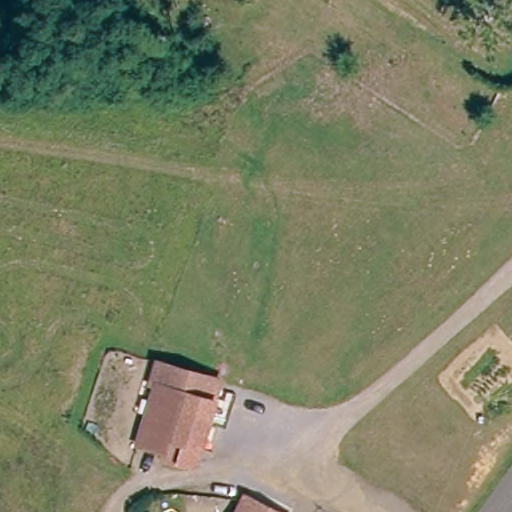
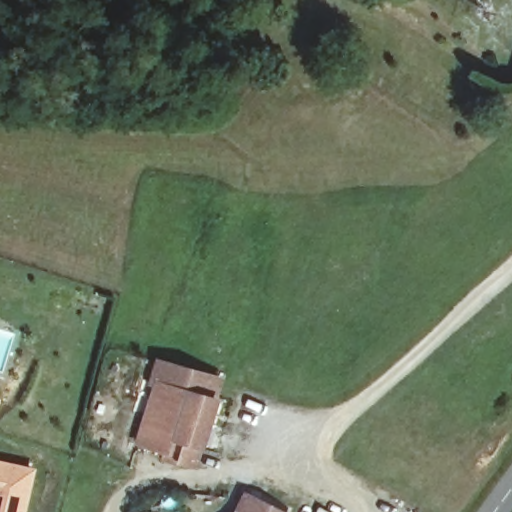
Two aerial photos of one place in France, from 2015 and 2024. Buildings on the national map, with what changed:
unchanged [(194,482),(178,477),(177,480),(162,475),(164,466),(137,458),(154,398),(149,397),(155,376),(219,395),(194,482)]
new [(22,512),(0,512),(0,467),(30,473),(22,512)]
unchanged [(240,500),(266,512),(235,512),(240,500)]

